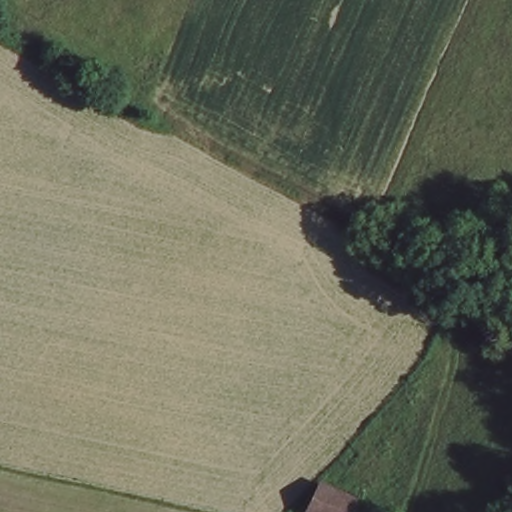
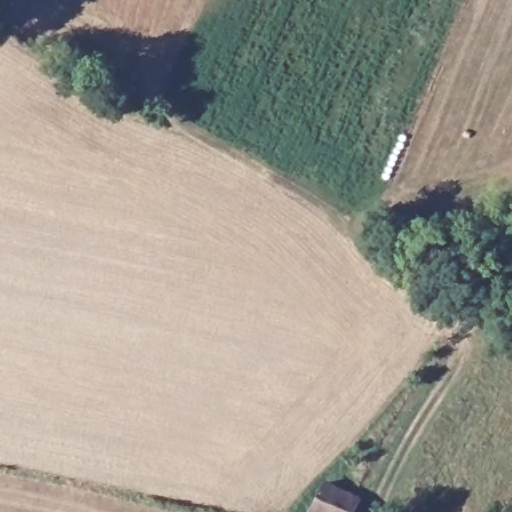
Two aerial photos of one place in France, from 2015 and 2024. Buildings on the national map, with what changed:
unchanged [(353,512),(311,512),(322,485),(358,500),(353,512)]

